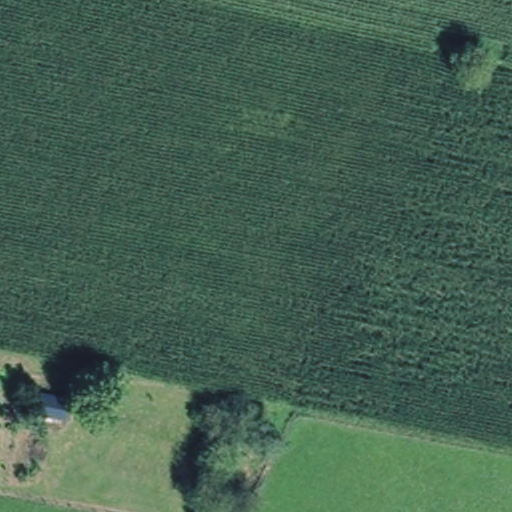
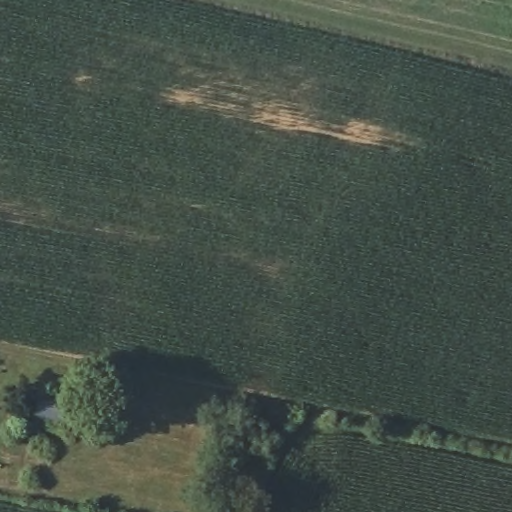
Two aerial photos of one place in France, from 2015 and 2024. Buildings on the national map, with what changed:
unchanged [(64,417),(36,411),(40,390),(69,396),(64,417)]

